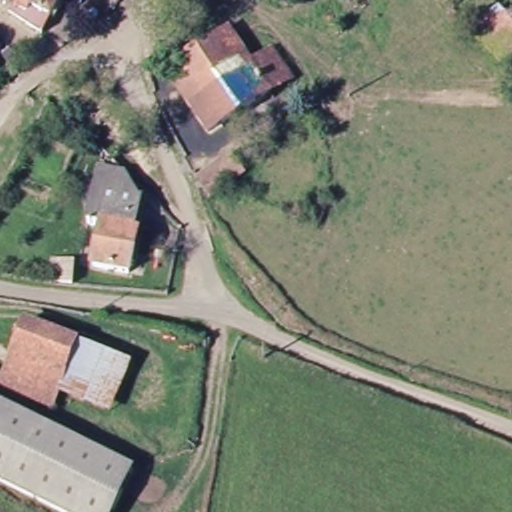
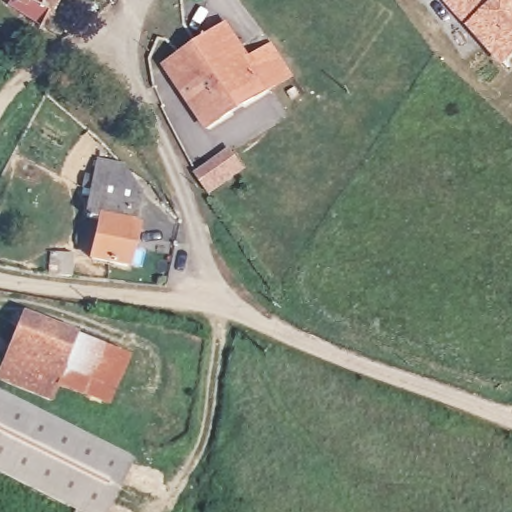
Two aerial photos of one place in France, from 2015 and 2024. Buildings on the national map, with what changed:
unchanged [(6,11),(12,2),(9,0),(56,0),(40,31),(6,11)]
demolished [(282,0),(287,0),(285,2),(282,0)]
new [(512,0),(512,57),(502,67),(442,1),(444,0),(512,0)]
demolished [(508,68),(472,29),(512,1),(512,65),(508,68)]
unchanged [(297,77),(206,137),(166,72),(232,29),(251,58),(279,41),(297,77)]
unchanged [(132,263),(97,256),(102,217),(90,215),(96,177),(100,158),(125,162),(122,182),(141,185),(136,221),(137,229),(132,263)]
unchanged [(202,205),(193,182),(231,159),(236,167),(243,181),(202,205)]
unchanged [(73,288),(51,285),(55,263),(77,268),(73,288)]
unchanged [(60,373),(12,352),(27,320),(74,341),(60,373)]
unchanged [(74,341),(128,366),(115,397),(60,373),(74,341)]
unchanged [(87,507),(0,469),(0,393),(114,441),(87,507)]

